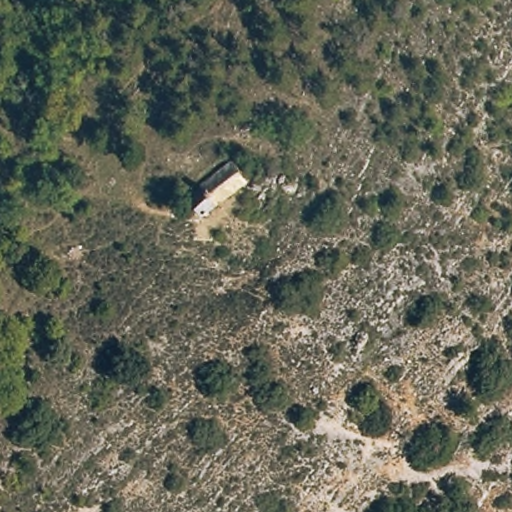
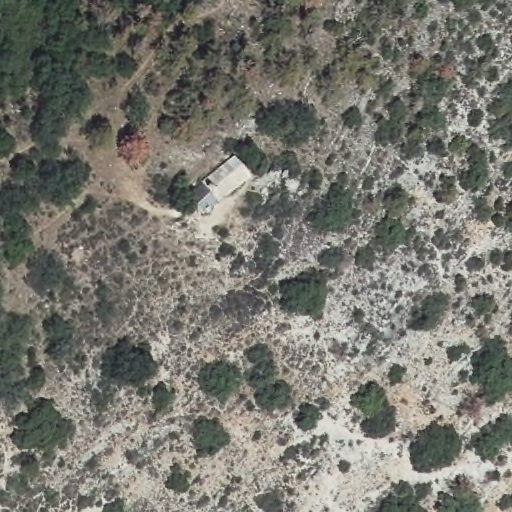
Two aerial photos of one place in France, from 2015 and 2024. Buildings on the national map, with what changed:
unchanged [(252,179),(205,219),(185,192),(232,152),(252,179)]

